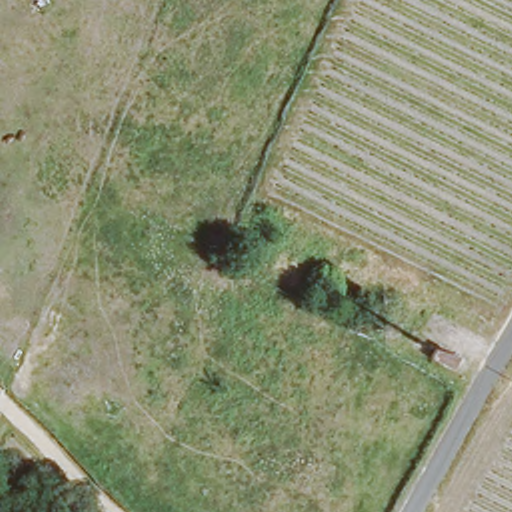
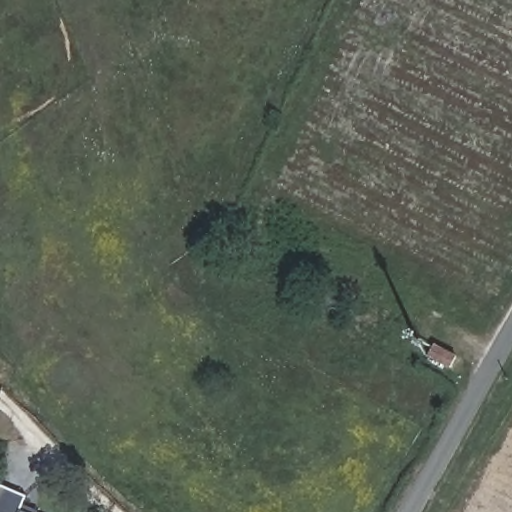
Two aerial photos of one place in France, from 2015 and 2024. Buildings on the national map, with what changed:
new [(39,512),(0,512),(0,489),(1,487),(26,496),(22,505),(39,512)]

